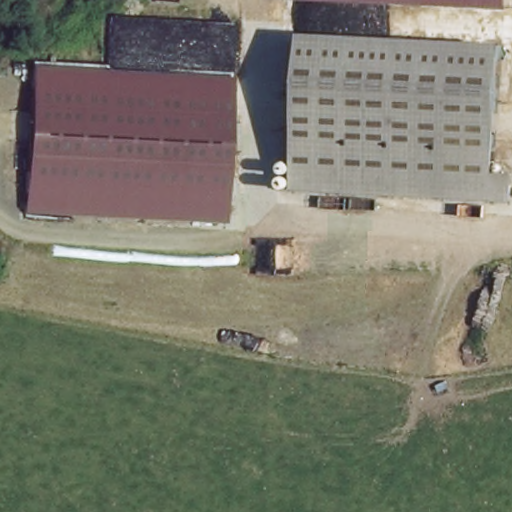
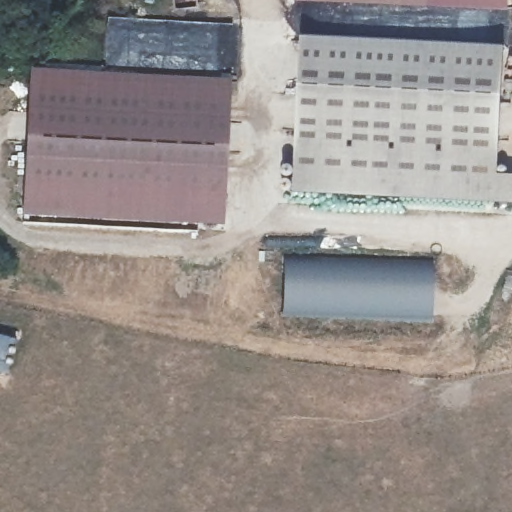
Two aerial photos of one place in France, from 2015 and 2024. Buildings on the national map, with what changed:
unchanged [(302,0),(505,0),(505,4),(302,10),(302,0)]
unchanged [(305,202),(301,47),(503,42),(504,171),(512,171),(512,197),(490,197),(305,202)]
unchanged [(223,67),(226,214),(28,222),(25,76),(223,67)]
new [(282,255),(349,256),(433,259),(431,322),(281,317),(282,255)]

